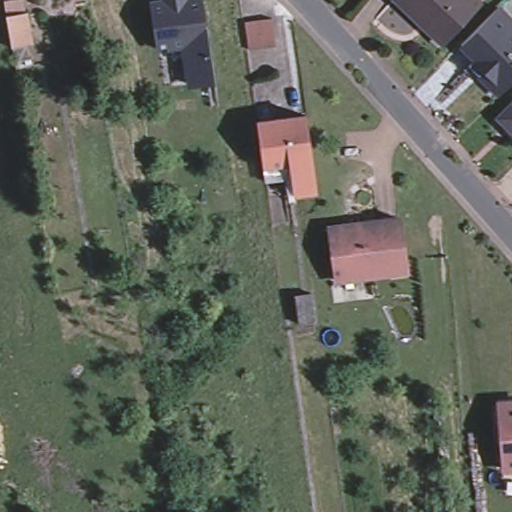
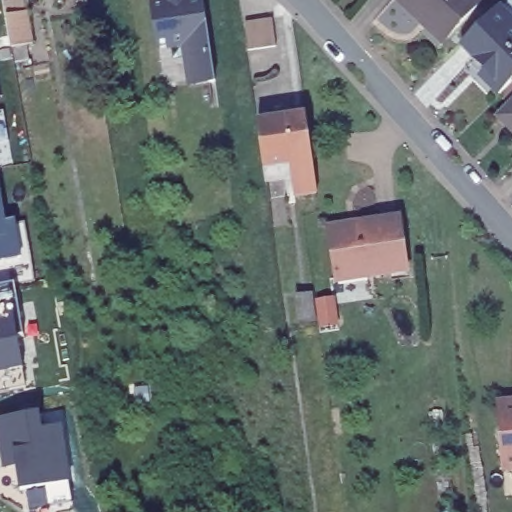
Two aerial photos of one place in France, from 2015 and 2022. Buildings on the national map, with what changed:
unchanged [(213,79),(188,82),(185,55),(172,57),(171,44),(155,46),(151,19),(148,2),(160,0),(202,0),(213,79)]
unchanged [(441,40),(424,25),(397,0),(477,0),(441,40)]
unchanged [(474,57),(459,42),(497,6),(512,21),(512,80),(498,94),(478,74),(468,63),(474,57)]
unchanged [(29,7),(34,45),(4,49),(0,13),(29,7)]
unchanged [(243,20),(270,16),(274,42),(246,46),(243,20)]
unchanged [(497,116),(512,100),(512,131),(497,116)]
unchanged [(259,120),(309,114),(319,189),(298,192),(294,162),(266,166),(259,120)]
new [(17,219),(23,261),(0,264),(0,186),(6,221),(17,219)]
unchanged [(398,216),(405,268),(335,278),(328,226),(398,216)]
new [(18,328),(24,368),(0,373),(0,286),(15,284),(24,330),(18,328)]
unchanged [(318,321),(298,322),(294,292),(314,290),(318,321)]
unchanged [(500,467),(495,403),(512,402),(512,481),(502,482),(500,467)]
new [(61,426),(71,482),(20,491),(16,466),(2,471),(0,457),(0,418),(39,411),(42,429),(61,426)]

